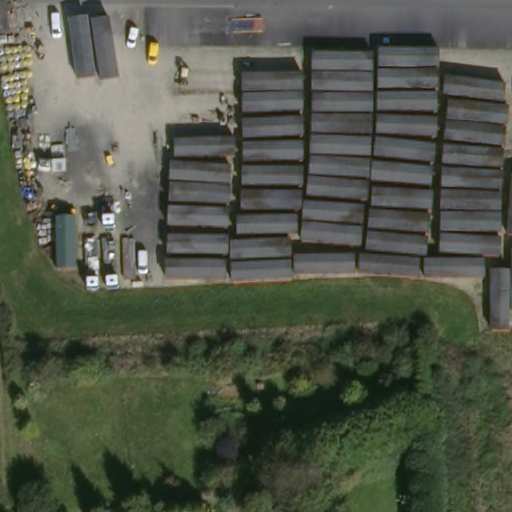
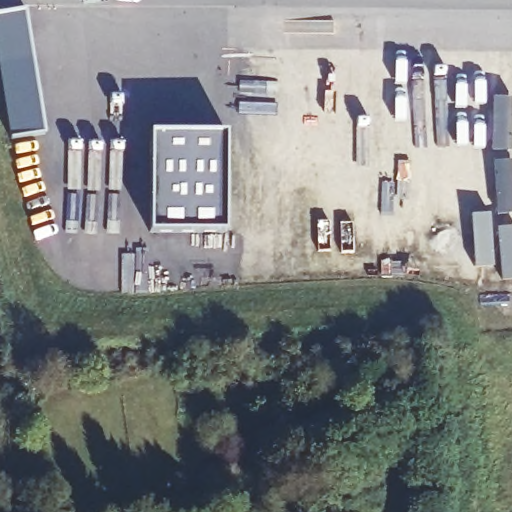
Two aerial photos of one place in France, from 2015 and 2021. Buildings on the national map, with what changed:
new [(35,62),(0,67),(0,14),(26,10),(35,62)]
new [(45,136),(10,141),(0,70),(0,67),(35,62),(45,136)]
new [(150,133),(226,134),(225,235),(149,234),(150,133)]

